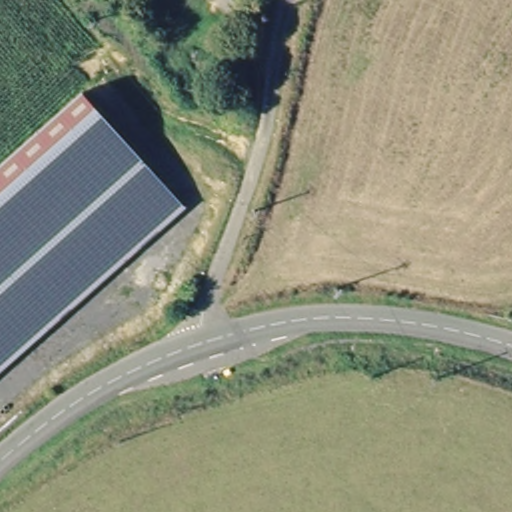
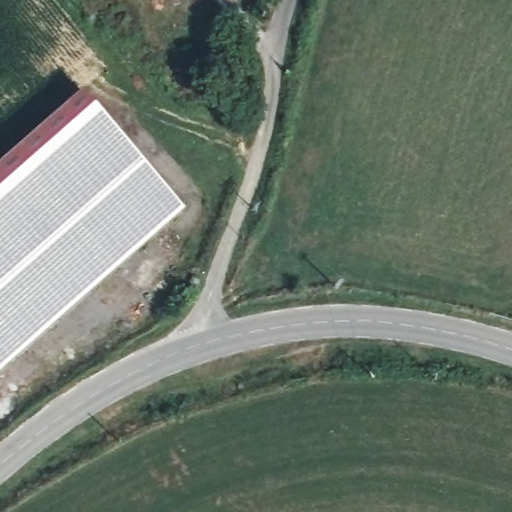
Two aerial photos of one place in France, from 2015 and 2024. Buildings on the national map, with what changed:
unchanged [(86,95),(181,213),(0,367),(0,168),(86,95)]
unchanged [(231,385),(243,380),(245,388),(232,392),(231,385)]

